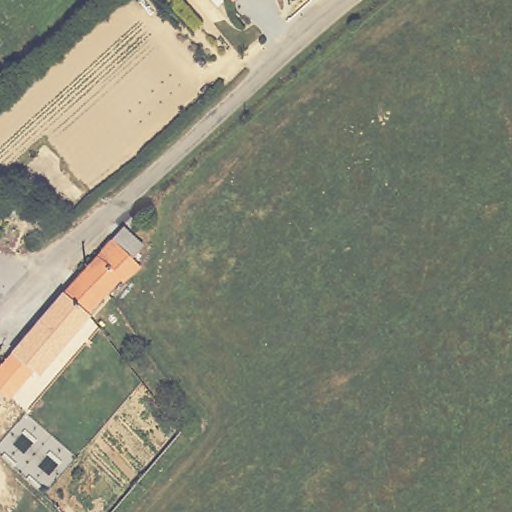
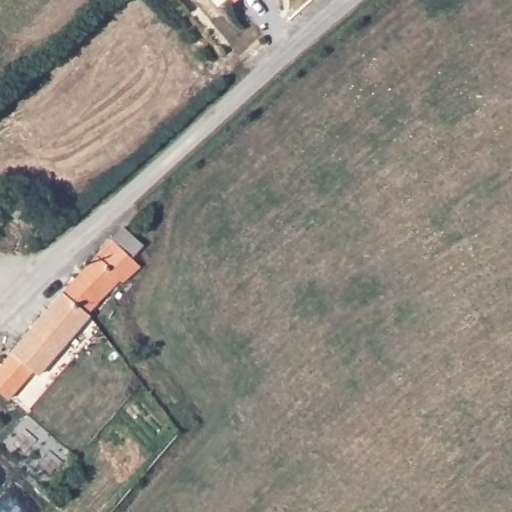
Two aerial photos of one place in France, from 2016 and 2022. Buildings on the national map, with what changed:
unchanged [(122,278),(92,309),(92,312),(41,371),(35,368),(22,380),(14,375),(0,390),(0,362),(114,235),(127,223),(147,241),(135,254),(144,263),(127,279),(122,278)]

